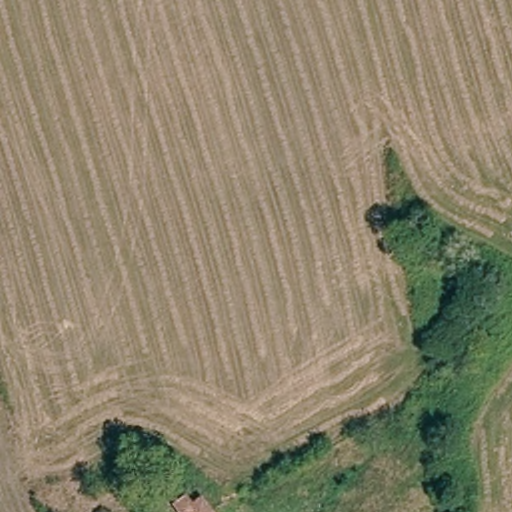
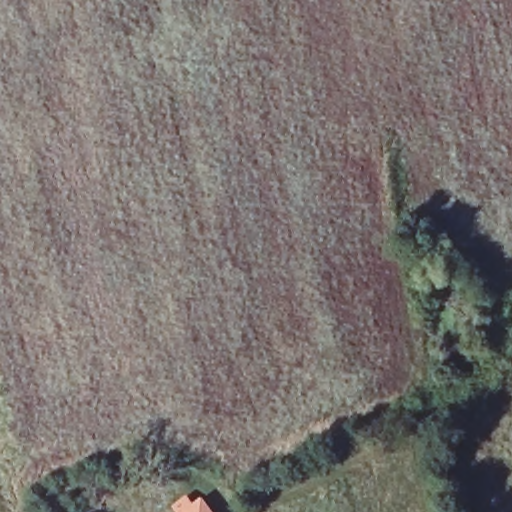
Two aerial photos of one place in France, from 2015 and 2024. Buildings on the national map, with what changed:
unchanged [(171,503),(181,495),(188,503),(195,497),(207,512),(178,512),(177,511),(171,503)]

